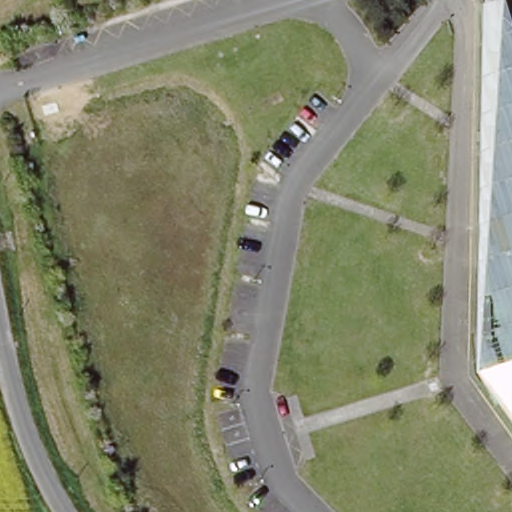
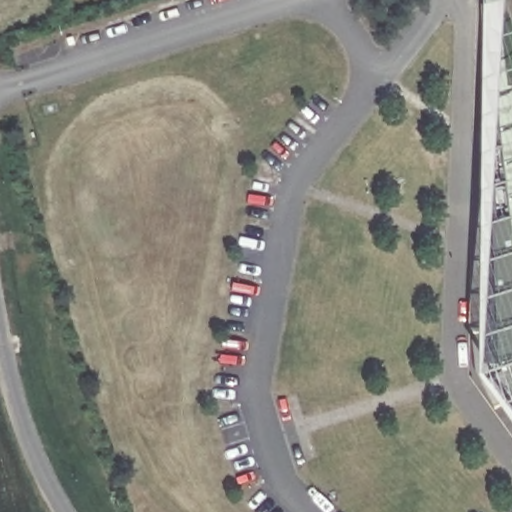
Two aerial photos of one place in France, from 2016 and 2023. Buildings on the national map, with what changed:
unchanged [(486,0),(507,0),(512,16),(512,426),(477,376),(486,0)]

